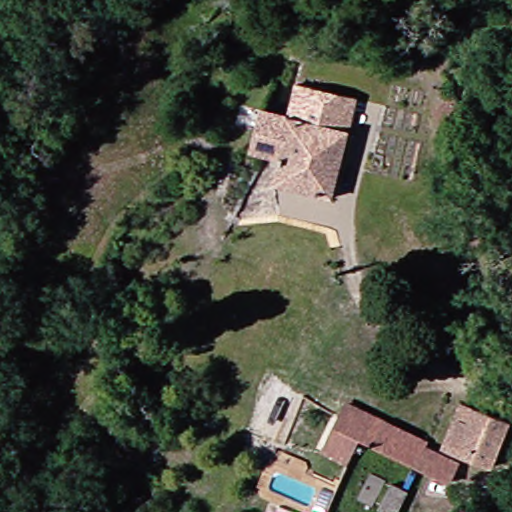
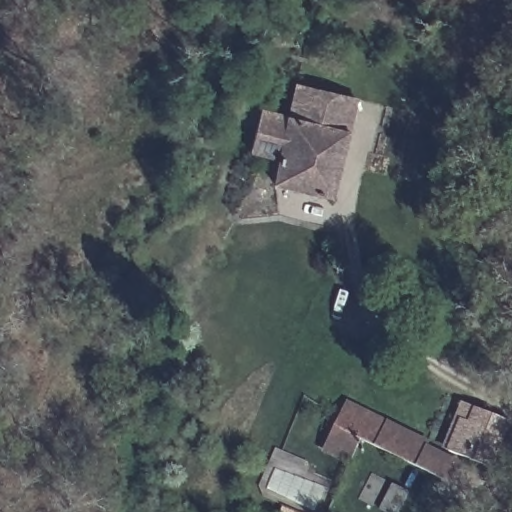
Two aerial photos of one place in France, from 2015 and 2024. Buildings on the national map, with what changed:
unchanged [(272,186),(275,158),(248,154),(255,109),(288,115),(294,85),(355,99),(349,129),(332,197),(272,186)]
unchanged [(482,464),(454,451),(465,423),(473,403),(483,407),(486,408),(500,418),(482,464)]
unchanged [(384,423),(373,447),(355,438),(348,453),(329,443),(326,442),(345,404),(358,410),(384,423)]
unchanged [(421,469),(373,447),(384,423),(420,441),(418,446),(445,458),(437,477),(421,469)]
unchanged [(360,501),(347,494),(358,471),(372,477),(360,501)]
unchanged [(383,511),(369,505),(381,483),(394,489),(383,511)]

